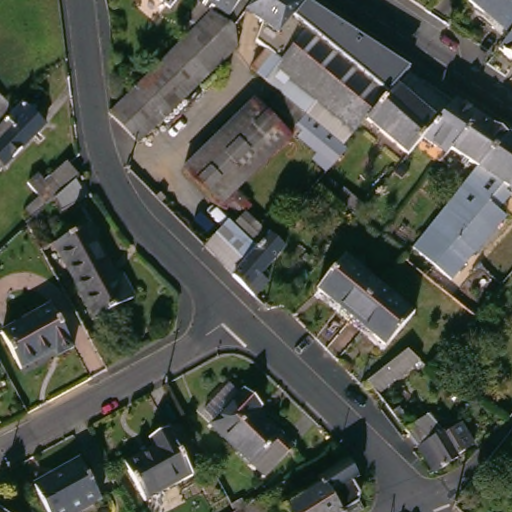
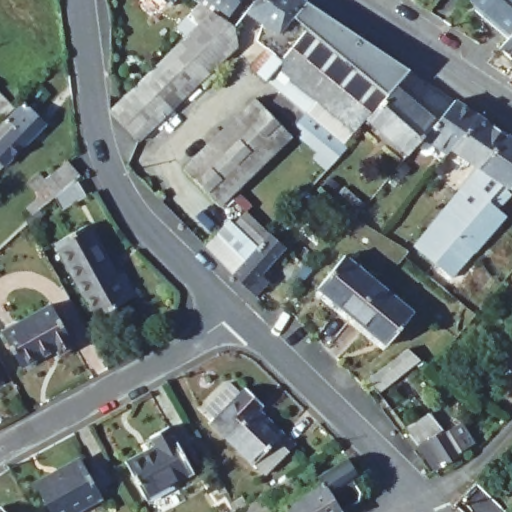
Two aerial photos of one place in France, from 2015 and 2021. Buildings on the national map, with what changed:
unchanged [(194,36),(185,27),(209,2),(205,0),(263,0),(255,10),(243,25),(246,45),(146,143),(117,113),(161,69),(194,36)]
unchanged [(309,133),(322,120),(313,113),(305,124),(278,104),(287,92),(257,66),(272,48),(262,40),(270,22),(255,10),(263,0),(315,0),(330,10),(394,53),(417,68),(404,83),(397,92),(395,89),(385,102),(357,135),(351,142),(356,146),(343,160),(309,133)]
unchanged [(512,23),(483,0),(512,0),(512,23)]
unchanged [(506,43),(512,35),(512,48),(506,43)]
unchanged [(432,135),(416,153),(375,118),(397,92),(404,83),(446,118),(432,135)]
unchanged [(11,116),(0,104),(0,93),(4,90),(13,100),(21,108),(11,116)]
unchanged [(300,135),(227,204),(192,168),(263,98),(300,135)]
unchanged [(486,114),(460,145),(457,148),(454,152),(432,135),(446,118),(462,98),(486,114)]
unchanged [(0,169),(0,132),(14,119),(23,110),(32,100),(33,100),(57,124),(14,166),(11,163),(2,171),(0,169)]
unchanged [(460,145),(486,114),(512,132),(486,163),(460,145)]
unchanged [(512,179),(511,181),(508,184),(442,263),(419,244),(486,163),(512,132),(512,179)]
unchanged [(65,196),(55,205),(34,183),(45,173),(52,182),(74,162),(87,176),(86,176),(65,196)]
unchanged [(512,179),(512,182),(511,181),(512,179)]
unchanged [(512,187),(512,198),(503,207),(512,214),(458,276),(442,263),(508,184),(512,187)]
unchanged [(202,240),(227,214),(232,218),(244,206),(267,228),(231,268),(202,240)]
unchanged [(358,208),(365,213),(361,219),(353,214),(358,208)]
unchanged [(130,270),(144,296),(104,318),(63,242),(97,224),(124,273),(130,270)]
unchanged [(268,227),(283,242),(258,268),(267,277),(252,290),(231,268),(267,228),(268,227)]
unchanged [(325,288),(352,254),(387,282),(360,316),(325,288)]
unchanged [(422,310),(393,344),(360,316),(387,282),(422,310)]
unchanged [(73,350),(70,344),(35,364),(16,327),(66,299),(89,341),(73,350)]
unchanged [(428,358),(385,392),(375,378),(415,347),(428,358)]
unchanged [(0,385),(0,364),(10,380),(0,385)]
unchanged [(247,391),(254,384),(271,401),(266,408),(303,443),(272,475),(217,423),(221,417),(212,408),(237,381),(247,391)]
unchanged [(436,410),(450,429),(452,433),(471,422),(483,443),(465,454),(466,456),(441,467),(422,440),(398,410),(406,404),(418,421),(436,410)]
unchanged [(157,499),(137,460),(167,444),(163,435),(181,425),(207,472),(157,499)]
unchanged [(297,486),(301,491),(328,472),(325,467),(355,448),(367,467),(361,470),(370,483),(367,491),(350,502),(352,506),(342,512),(302,512),(293,498),(271,512),(230,512),(239,507),(247,502),(270,487),(299,468),(307,480),(297,486)]
unchanged [(65,512),(47,479),(95,455),(115,493),(78,512),(65,512)]
unchanged [(18,512),(0,512),(0,511),(9,502),(18,512)]

